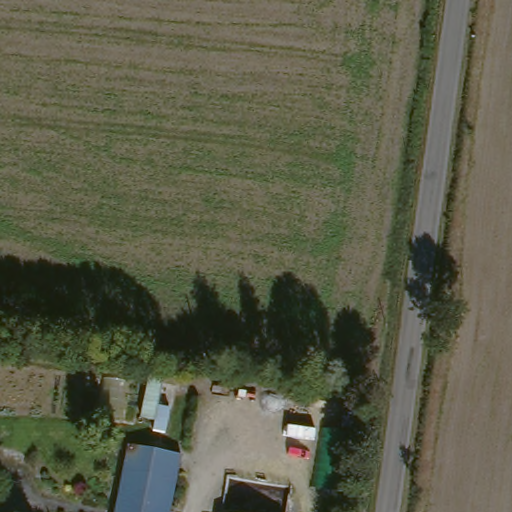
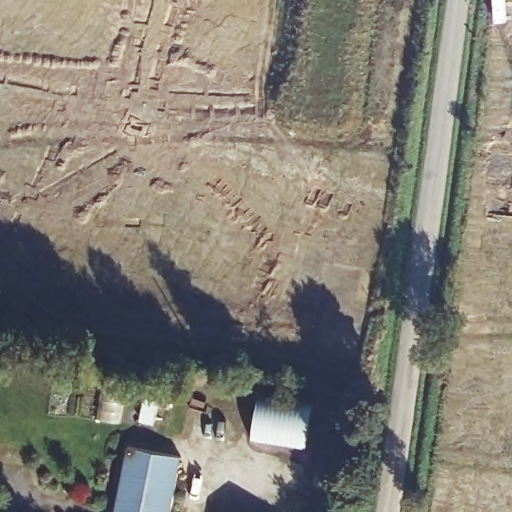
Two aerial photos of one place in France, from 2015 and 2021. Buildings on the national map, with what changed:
new [(259,395),(314,406),(309,443),(254,432),(259,395)]
unchanged [(114,512),(125,453),(179,460),(177,472),(170,512),(114,512)]

